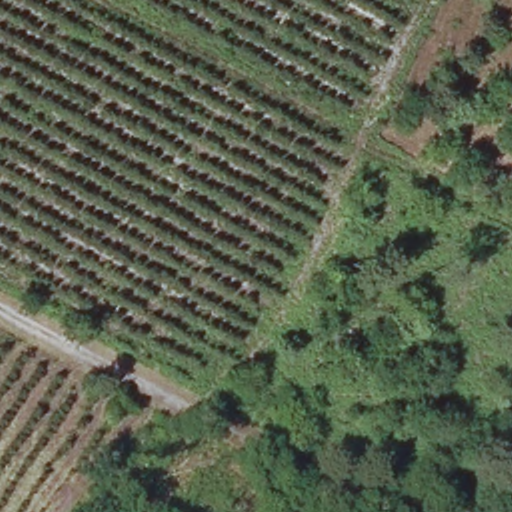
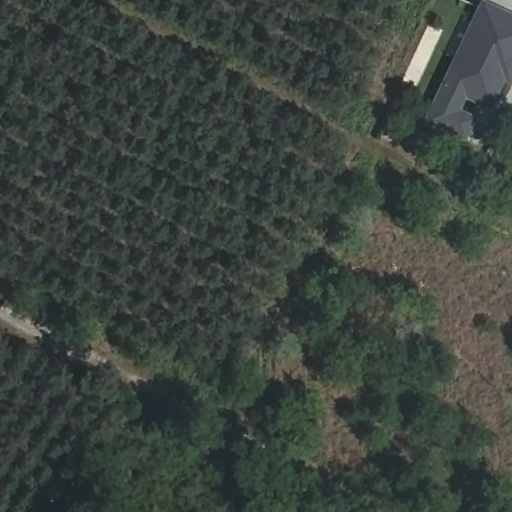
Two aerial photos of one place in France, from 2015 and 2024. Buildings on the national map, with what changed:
new [(490,106),(476,99),(463,93),(455,109),(473,118),(464,138),(427,120),(483,3),(512,17),(512,73),(508,81),(488,72),(503,79),(490,106)]

